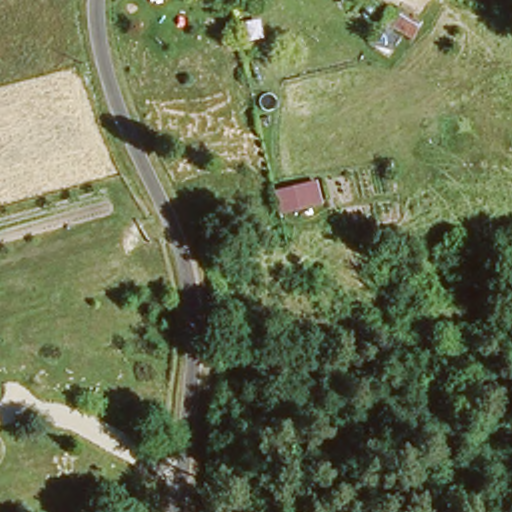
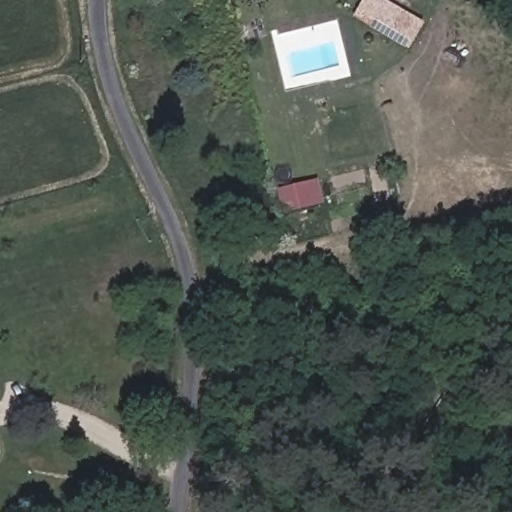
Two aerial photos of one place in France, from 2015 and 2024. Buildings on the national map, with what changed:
new [(361,0),(385,0),(424,23),(407,51),(351,17),(361,0)]

